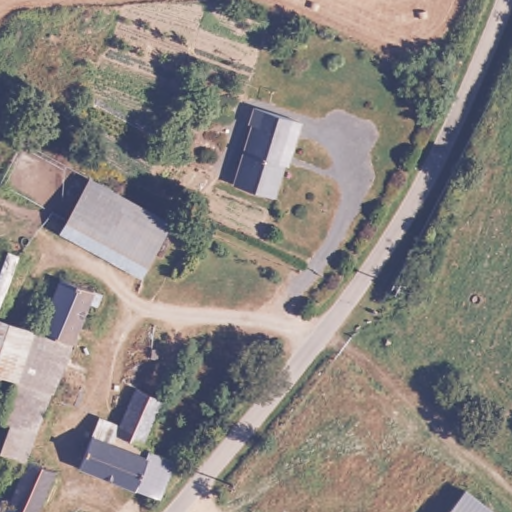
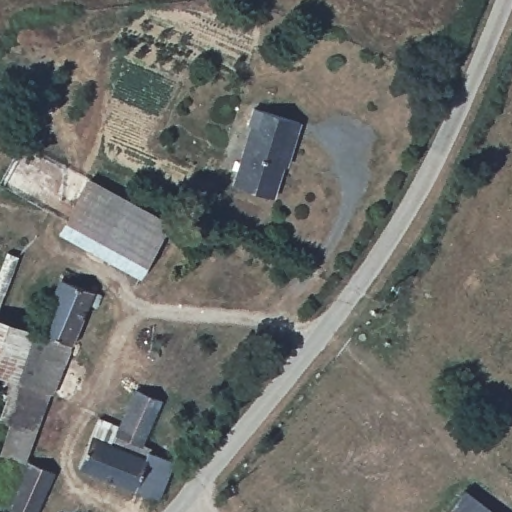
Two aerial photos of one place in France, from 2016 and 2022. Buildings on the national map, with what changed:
unchanged [(239,177),(254,122),(254,116),(257,101),(302,115),(292,149),(288,147),(275,189),(239,177)]
unchanged [(170,218),(137,275),(60,227),(89,173),(170,218)]
unchanged [(87,287),(95,290),(91,304),(83,302),(71,330),(40,317),(57,275),(87,287)]
unchanged [(18,372),(0,364),(0,307),(37,323),(18,372)]
unchanged [(15,379),(18,372),(37,323),(40,317),(71,330),(36,414),(11,406),(21,382),(15,379)]
unchanged [(119,430),(136,386),(162,397),(144,439),(119,430)]
unchanged [(0,450),(0,422),(7,404),(11,406),(36,414),(18,457),(0,450)]
unchanged [(160,499),(80,464),(90,434),(97,415),(117,424),(111,442),(146,456),(152,446),(184,461),(160,499)]
unchanged [(25,457),(51,469),(35,503),(31,512),(0,512),(0,511),(25,457)]
unchanged [(467,486),(496,512),(447,512),(467,486)]
unchanged [(35,503),(48,512),(31,512),(35,503)]

